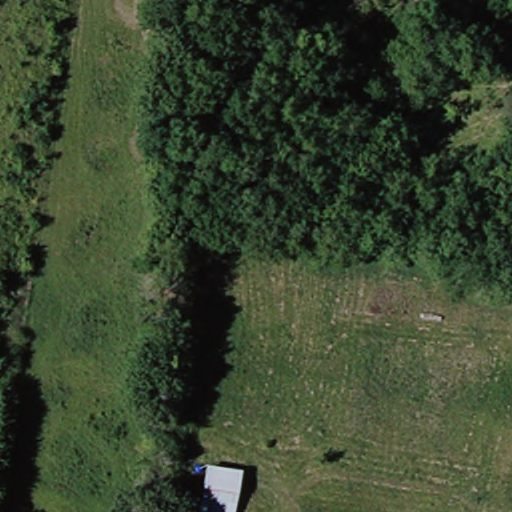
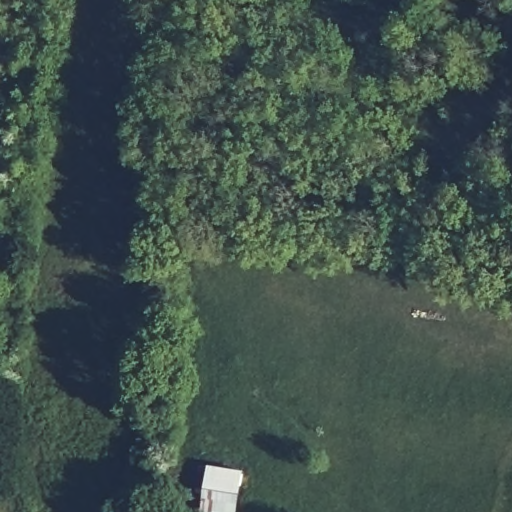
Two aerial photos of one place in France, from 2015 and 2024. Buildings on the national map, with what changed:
unchanged [(239,471),(233,512),(197,512),(202,467),(239,471)]

